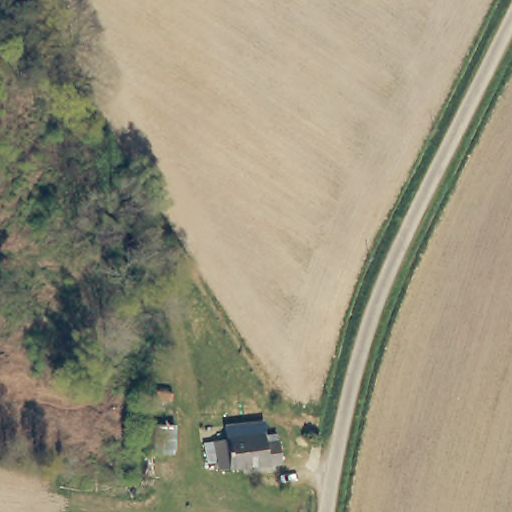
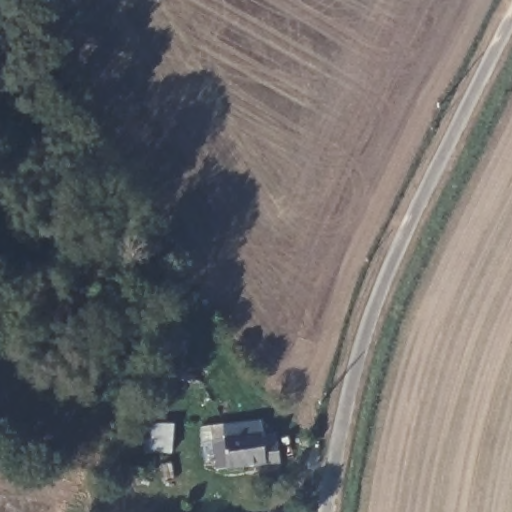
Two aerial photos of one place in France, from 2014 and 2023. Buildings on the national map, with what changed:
unchanged [(227,432),(260,425),(262,439),(264,444),(276,443),(280,461),(222,473),(218,448),(230,445),(227,432)]

